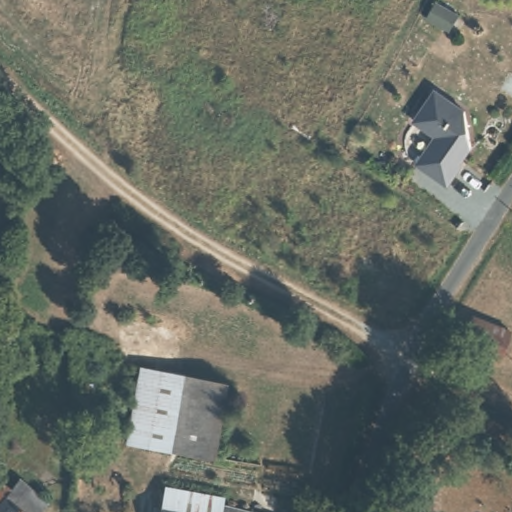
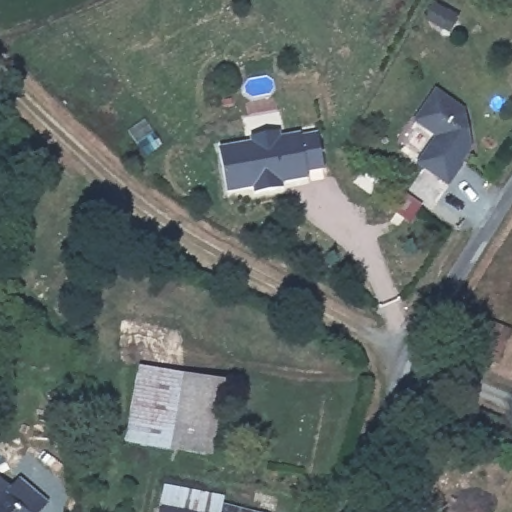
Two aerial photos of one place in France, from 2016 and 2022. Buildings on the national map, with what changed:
unchanged [(460,14),(449,33),(423,19),(434,0),(437,0),(460,14)]
unchanged [(465,113),(472,148),(457,172),(459,174),(450,187),(419,167),(437,139),(415,124),(436,91),(465,113)]
new [(274,188),(255,192),(254,185),(226,190),(219,147),(252,141),(251,135),(278,131),(280,137),(300,133),(300,135),(317,132),(323,166),(306,170),(307,176),(281,180),(282,187),(274,188)]
unchanged [(508,336),(496,360),(457,341),(470,316),(508,336)]
unchanged [(228,377),(214,456),(122,439),(137,360),(228,377)]
demolished [(95,398),(96,418),(74,421),(72,399),(95,398)]
unchanged [(4,488),(14,476),(46,506),(40,512),(0,512),(0,484),(4,488)]
unchanged [(173,489),(215,498),(215,502),(263,512),(154,512),(160,487),(173,489)]

